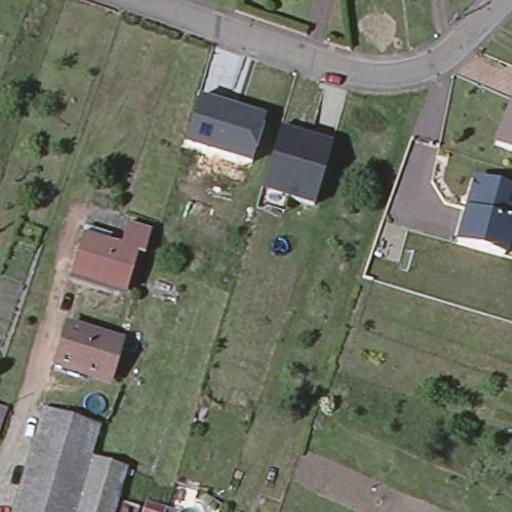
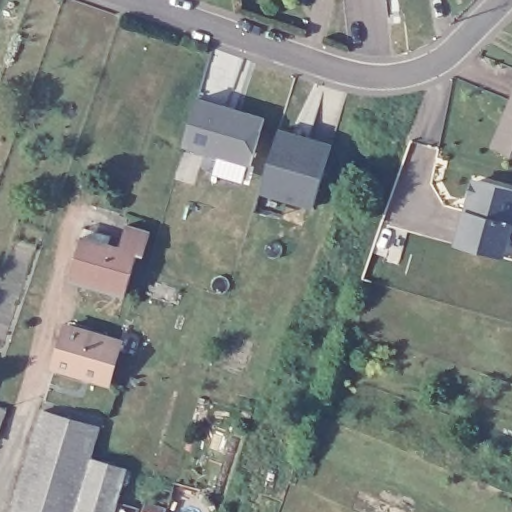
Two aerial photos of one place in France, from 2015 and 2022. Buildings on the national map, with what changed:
unchanged [(184,144),(199,97),(266,117),(250,164),(184,144)]
unchanged [(503,151),(497,149),(507,126),(512,113),(512,155),(503,151)]
unchanged [(257,203),(261,188),(279,126),(333,142),(314,204),(289,196),(284,211),(257,203)]
unchanged [(471,209),(473,200),(469,194),(472,184),(479,177),(512,187),(512,221),(503,254),(456,242),(466,208),(471,209)]
unchanged [(83,231),(116,240),(123,221),(153,232),(133,296),(68,279),(83,231)]
unchanged [(113,344),(103,379),(66,368),(77,332),(113,344)]
unchanged [(101,422),(94,444),(91,456),(74,512),(11,512),(43,405),(101,422)]
unchanged [(0,429),(0,422),(3,422),(0,429)]
unchanged [(121,488),(143,495),(139,506),(129,503),(128,507),(121,506),(123,501),(118,499),(114,512),(74,512),(91,456),(127,467),(121,488)]
unchanged [(166,508),(165,512),(144,512),(146,502),(166,508)]

